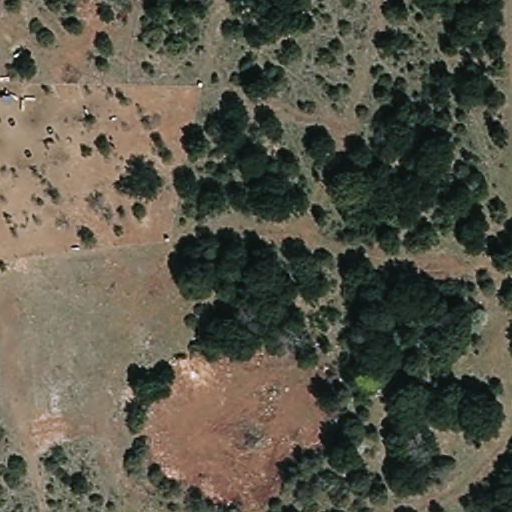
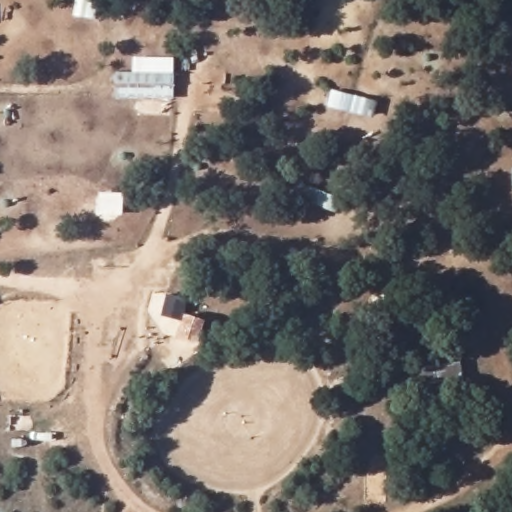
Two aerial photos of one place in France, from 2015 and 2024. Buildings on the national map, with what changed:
new [(115,99),(115,75),(131,75),(131,57),(174,58),(173,100),(115,99)]

